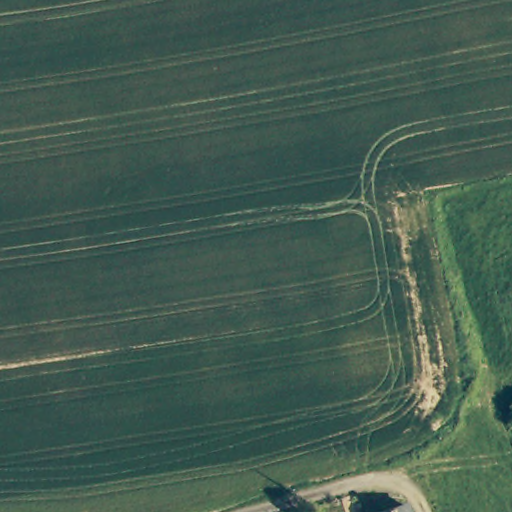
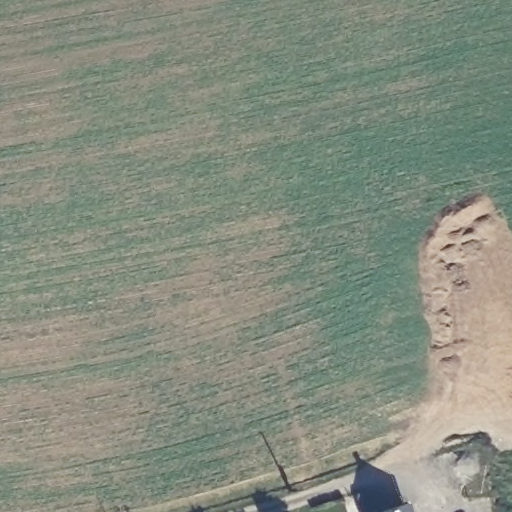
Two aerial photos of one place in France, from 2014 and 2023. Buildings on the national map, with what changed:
unchanged [(395,494),(401,512),(359,512),(357,507),(395,494)]

